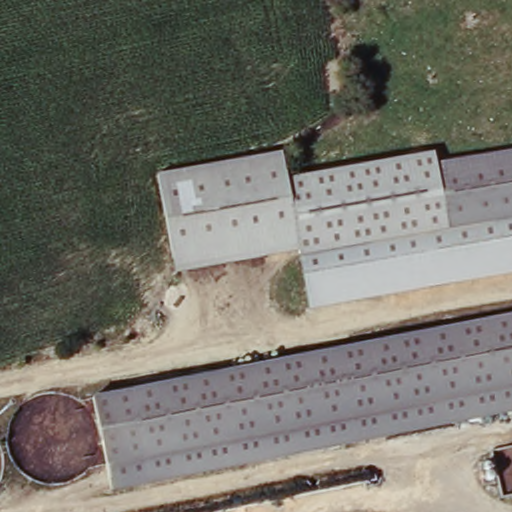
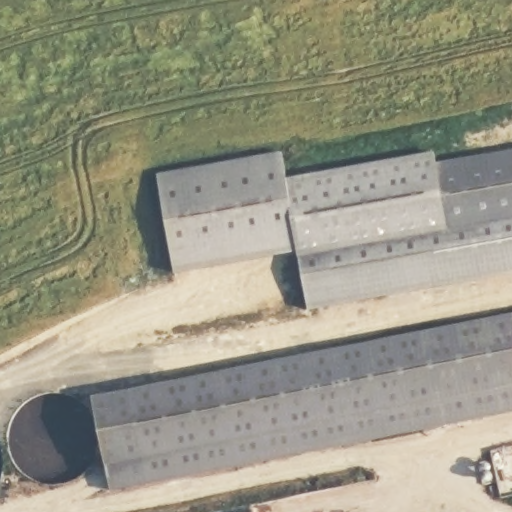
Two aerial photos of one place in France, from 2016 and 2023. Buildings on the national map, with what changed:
unchanged [(302,240),(177,263),(161,176),(286,154),(292,179),(302,240)]
unchanged [(433,154),(435,168),(403,174),(512,155),(512,223),(305,261),(302,240),(292,179),(400,160),(433,154)]
unchanged [(512,223),(512,273),(313,310),(305,261),(512,223)]
unchanged [(512,309),(512,404),(111,484),(92,394),(512,309)]

